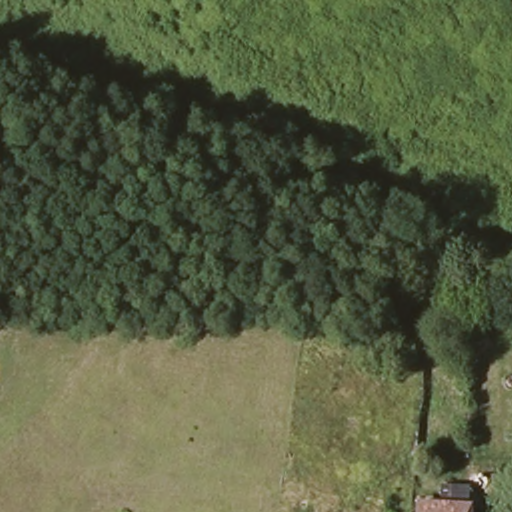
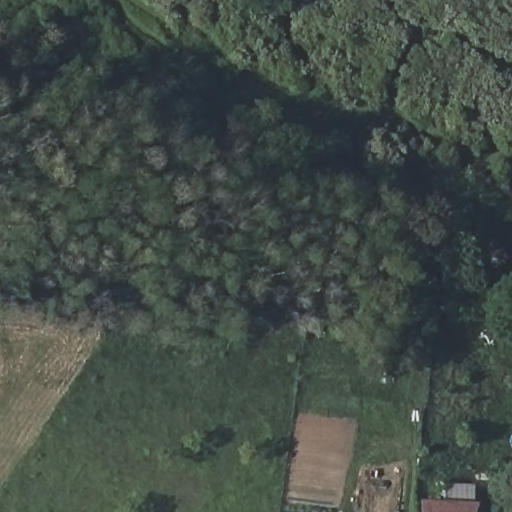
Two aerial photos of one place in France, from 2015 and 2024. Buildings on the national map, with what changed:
unchanged [(420,512),(420,503),(475,504),(475,512),(420,512)]

